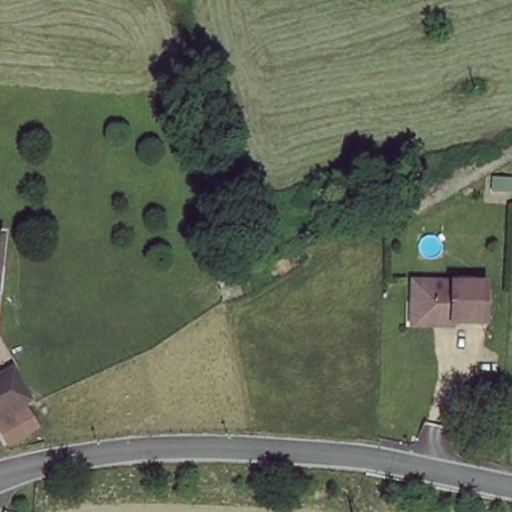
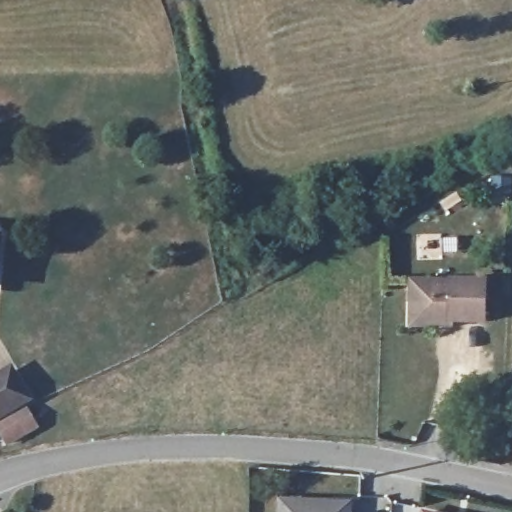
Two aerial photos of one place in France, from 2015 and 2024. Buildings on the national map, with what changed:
unchanged [(0,258),(0,237),(2,237),(0,258)]
unchanged [(487,286),(485,323),(410,318),(413,280),(487,286)]
unchanged [(0,412),(0,371),(13,363),(33,395),(13,405),(0,412)]
unchanged [(9,437),(0,420),(0,418),(15,410),(26,429),(9,437)]
new [(353,500),(352,512),(277,512),(277,497),(353,500)]
new [(436,512),(418,512),(419,508),(436,512)]

